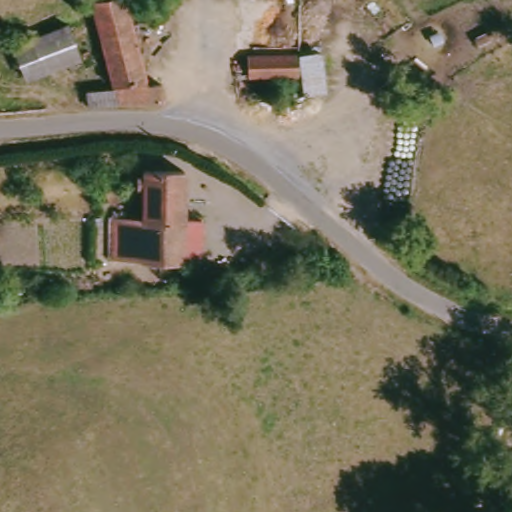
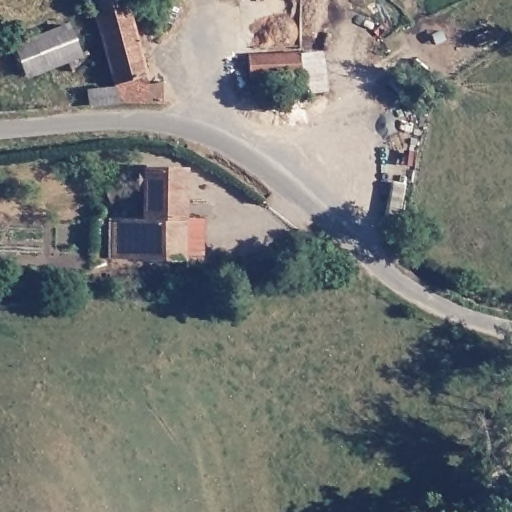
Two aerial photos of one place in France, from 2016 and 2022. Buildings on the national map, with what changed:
unchanged [(101,0),(128,0),(148,76),(115,85),(95,1),(101,0)]
unchanged [(70,28),(80,56),(28,76),(17,49),(70,28)]
unchanged [(255,60),(317,59),(317,77),(255,79),(255,60)]
unchanged [(91,91),(162,87),(164,104),(119,103),(92,106),(91,91)]
unchanged [(193,265),(177,264),(111,263),(111,223),(139,223),(141,175),(178,176),(178,221),(193,221),(193,265)]

